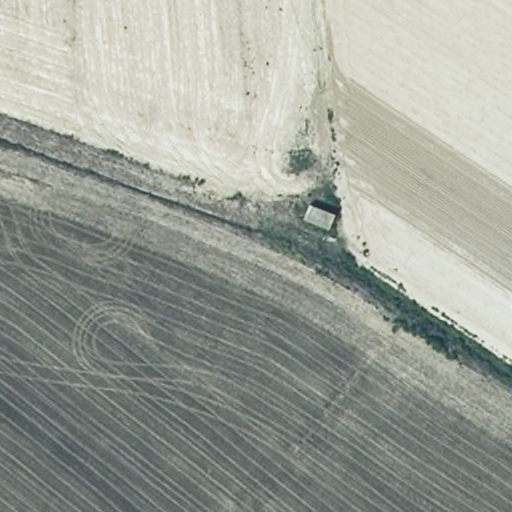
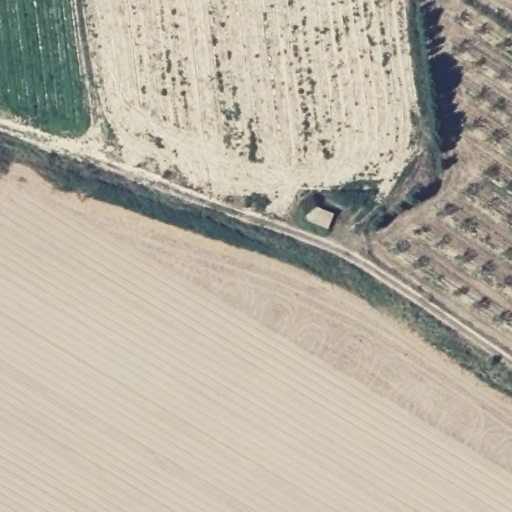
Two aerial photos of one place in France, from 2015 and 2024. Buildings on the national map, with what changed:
unchanged [(300,217),(306,199),(333,212),(328,231),(300,217)]

